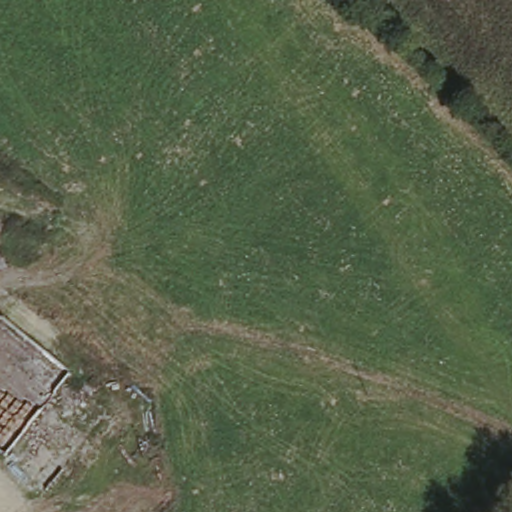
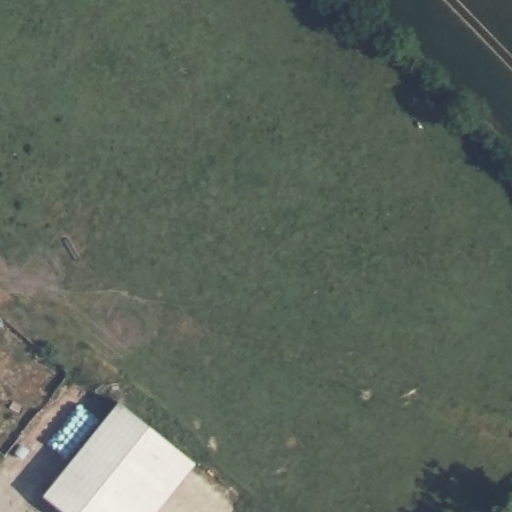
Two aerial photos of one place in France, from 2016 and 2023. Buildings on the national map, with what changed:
new [(196,456),(152,512),(67,512),(44,494),(119,393),(196,456)]

